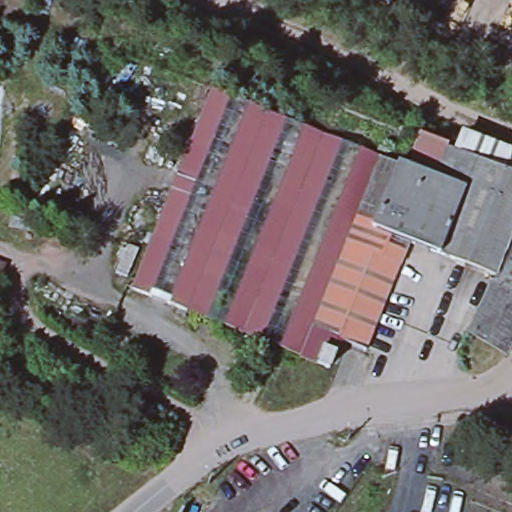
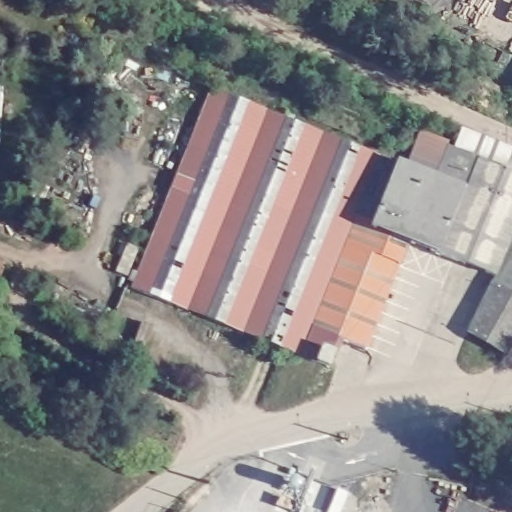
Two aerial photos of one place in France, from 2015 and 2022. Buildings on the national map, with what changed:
unchanged [(300,353),(132,286),(193,134),(205,103),(212,87),(380,155),(399,161),(401,163),(465,189),(459,205),(446,236),(439,254),(372,226),(363,247),(400,262),(365,348),(349,341),(340,338),(335,352),(322,346),(317,360),(300,353)]
unchanged [(458,125),(512,148),(512,297),(490,285),(494,277),(439,254),(446,236),(459,205),(465,189),(401,163),(418,129),(451,144),(458,125)]
unchanged [(5,268),(0,280),(0,266),(5,268)]
unchanged [(512,327),(499,349),(469,331),(490,285),(512,297),(512,327)]
unchanged [(499,349),(512,327),(512,351),(510,355),(499,349)]
unchanged [(493,456),(504,436),(512,441),(512,466),(505,462),(493,456)]

